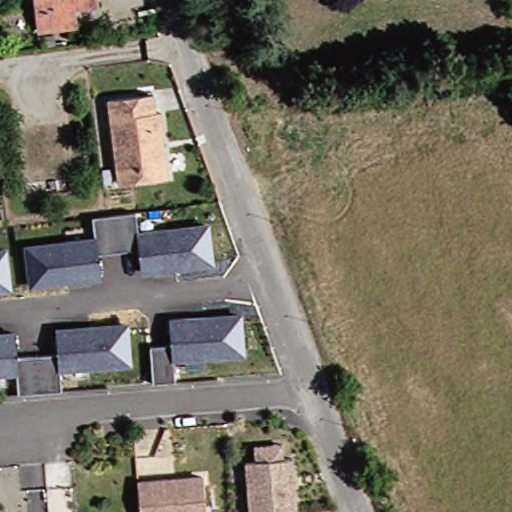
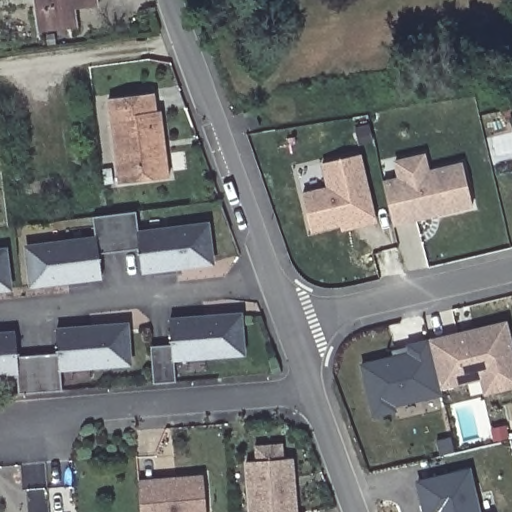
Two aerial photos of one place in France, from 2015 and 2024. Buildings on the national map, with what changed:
unchanged [(61,6),(64,24),(31,28),(28,0),(85,0),(85,3),(61,6)]
unchanged [(151,108),(155,107),(163,173),(114,179),(104,95),(149,90),(151,108)]
new [(342,224),(310,231),(302,194),(328,188),(322,162),(359,154),(374,222),(357,226),(343,230),(342,224)]
new [(392,225),(382,182),(398,178),(393,161),(424,154),(429,171),(462,163),(473,207),(438,215),(428,217),(392,225)]
unchanged [(139,249),(99,254),(101,277),(31,286),(26,247),(96,239),(94,217),(108,216),(135,212),(138,234),(207,225),(212,262),(142,271),(139,249)]
unchanged [(9,288),(0,289),(0,251),(4,250),(9,288)]
unchanged [(239,315),(243,353),(173,360),(175,382),(155,383),(152,346),(172,345),(170,321),(239,315)]
new [(480,378),(494,375),(439,388),(428,342),(459,334),(471,332),(504,323),(512,355),(512,387),(498,390),(484,393),(480,378)]
unchanged [(58,354),(56,331),(126,325),(129,363),(59,368),(60,391),(19,394),(18,372),(0,373),(0,335),(15,333),(17,357),(58,354)]
new [(393,406),(394,411),(373,416),(361,366),(409,354),(408,347),(428,342),(441,394),(393,406)]
new [(393,358),(391,351),(408,347),(409,354),(393,358)]
unchanged [(252,462),(250,447),(278,445),(279,460),(288,459),(292,512),(245,512),(242,462),(252,462)]
new [(428,503),(421,505),(416,483),(466,472),(476,512),(430,512),(428,503)]
unchanged [(201,512),(136,512),(134,482),(198,477),(201,512)]
new [(421,505),(428,503),(430,512),(422,512),(421,505)]

